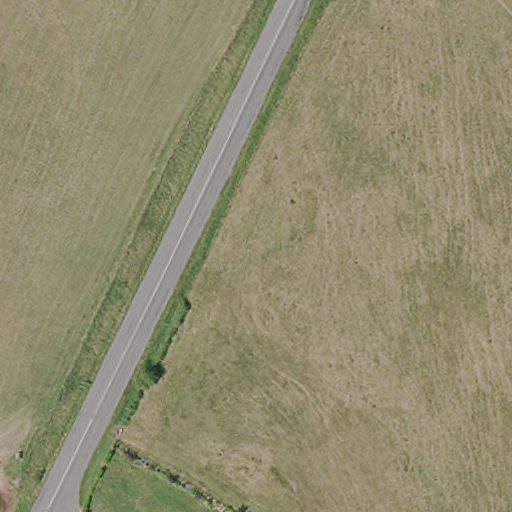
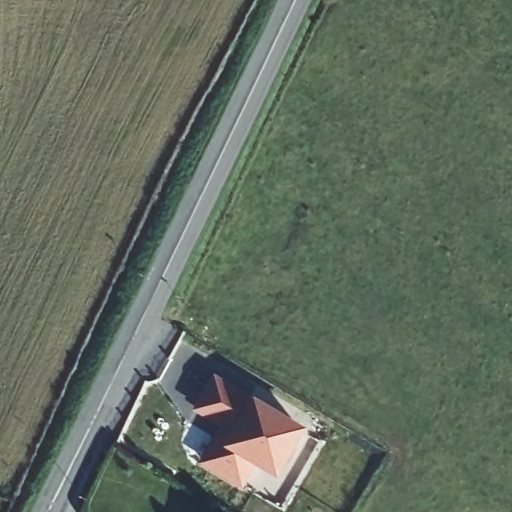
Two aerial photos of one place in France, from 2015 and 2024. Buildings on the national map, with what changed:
new [(198,464),(220,427),(192,410),(213,374),(305,428),(276,479),(255,467),(242,490),(198,464)]

